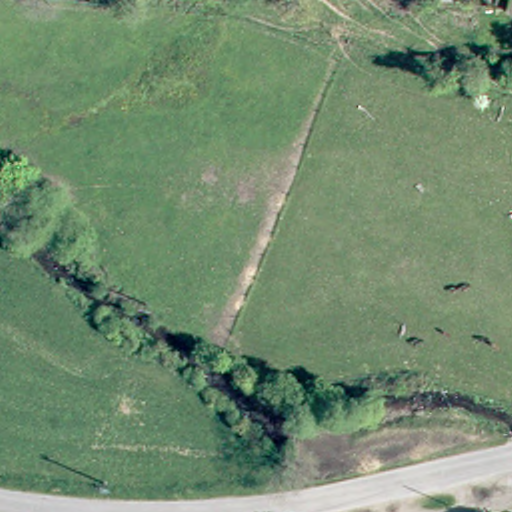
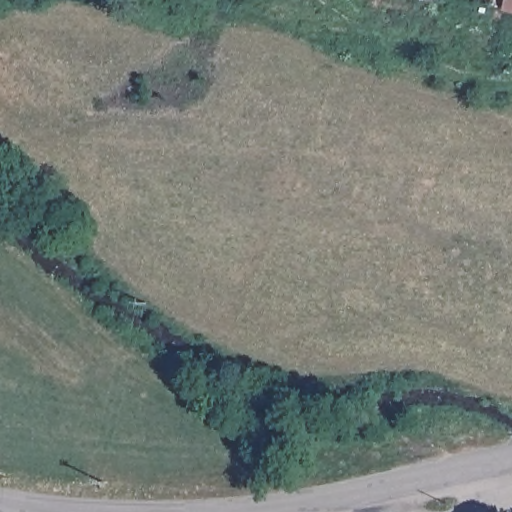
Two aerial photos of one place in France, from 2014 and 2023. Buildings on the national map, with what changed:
unchanged [(501,0),(512,0),(512,11),(499,8),(501,0)]

